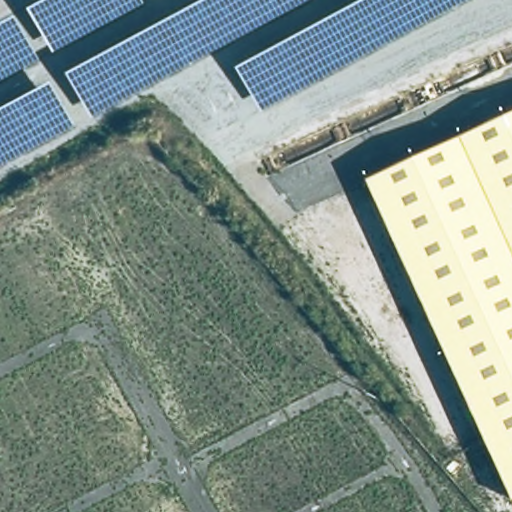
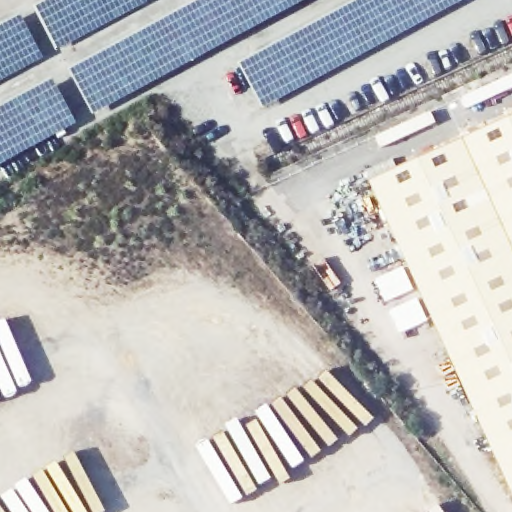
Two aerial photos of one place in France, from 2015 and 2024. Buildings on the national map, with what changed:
unchanged [(512,117),(512,492),(371,183),(512,117)]

